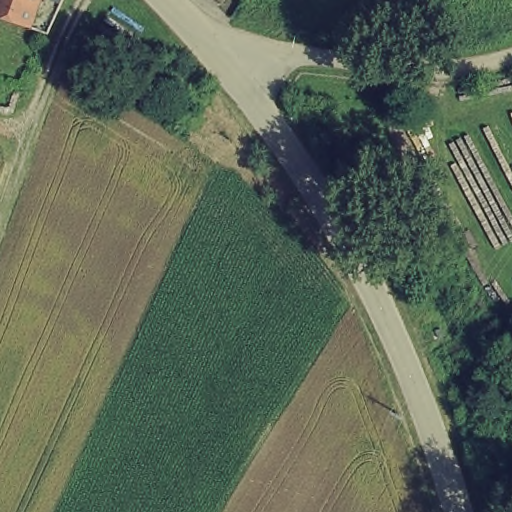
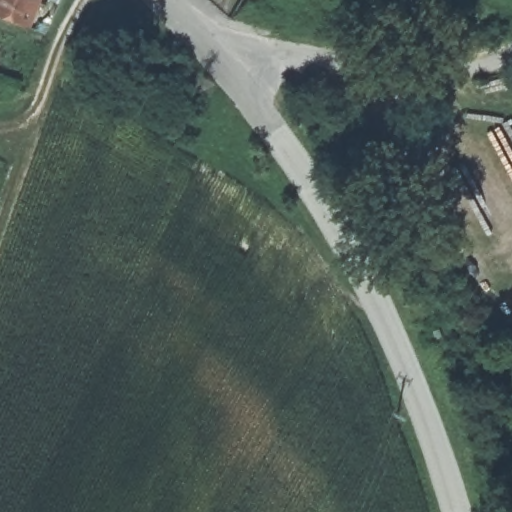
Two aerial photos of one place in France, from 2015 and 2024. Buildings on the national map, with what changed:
unchanged [(0,0),(40,0),(31,26),(0,15),(0,0)]

